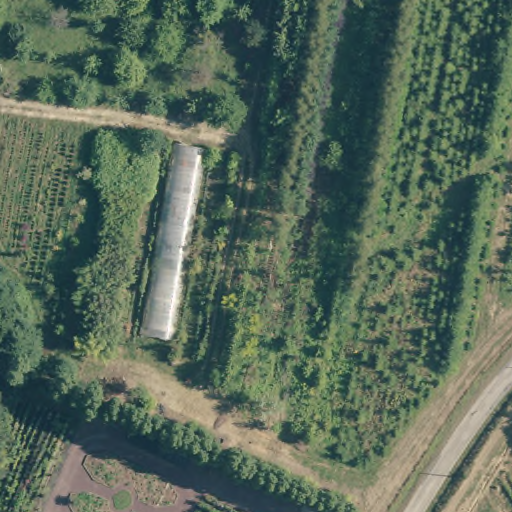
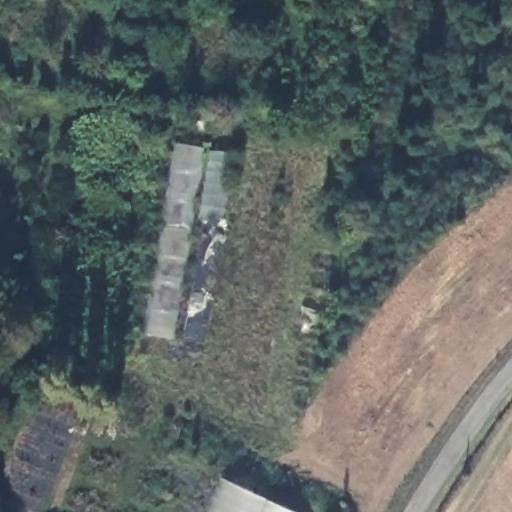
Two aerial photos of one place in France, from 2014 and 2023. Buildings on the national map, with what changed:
unchanged [(202,147),(169,338),(141,332),(173,140),(202,147)]
new [(298,512),(211,512),(226,478),(298,512)]

